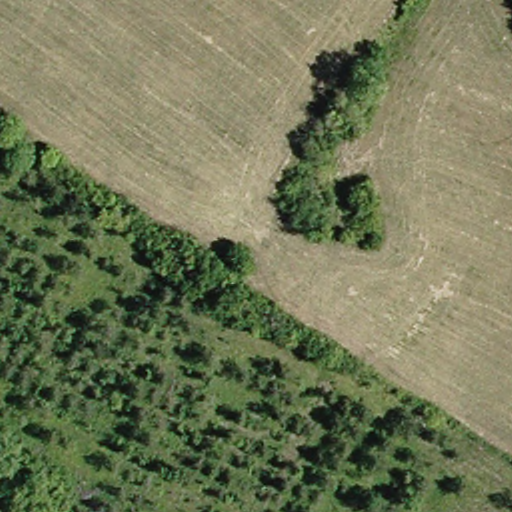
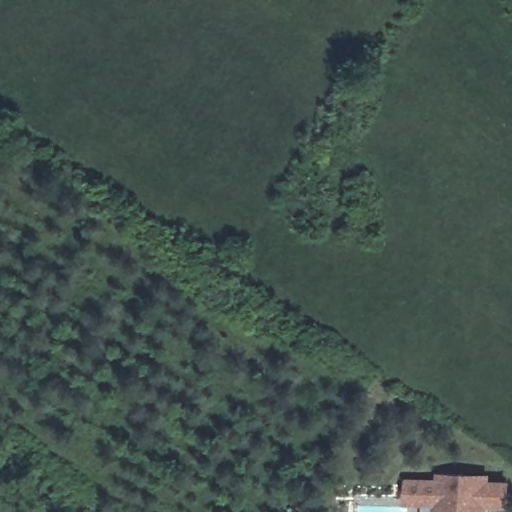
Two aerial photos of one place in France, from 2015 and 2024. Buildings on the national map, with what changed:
new [(405,486),(437,486),(437,479),(486,481),(485,488),(505,488),(505,509),(484,509),(484,512),(420,512),(420,507),(405,507),(405,486)]

